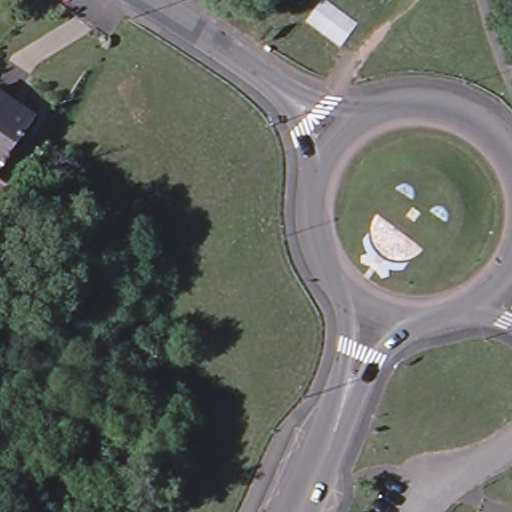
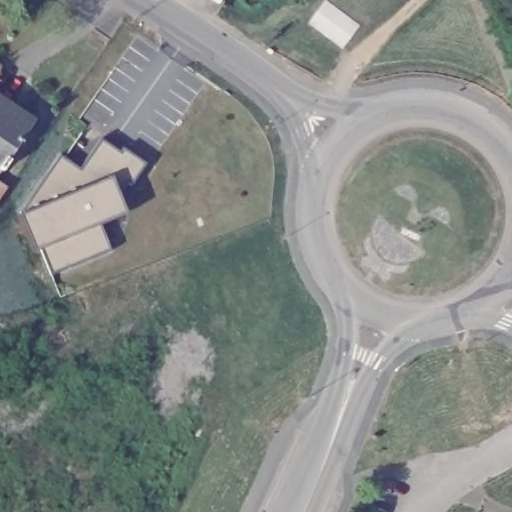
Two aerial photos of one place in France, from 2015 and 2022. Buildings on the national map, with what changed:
unchanged [(13,109),(31,122),(0,166),(0,100),(13,109)]
new [(80,172),(98,140),(120,153),(122,149),(143,163),(125,191),(132,215),(101,228),(109,250),(52,273),(45,255),(31,261),(12,216),(20,213),(60,157),(80,172)]
unchanged [(4,185),(0,191),(0,183),(4,185)]

